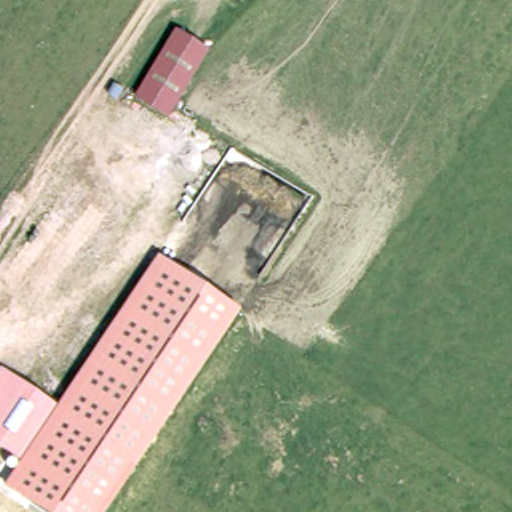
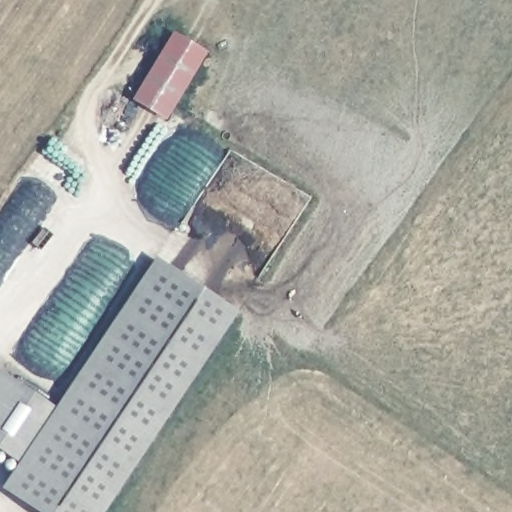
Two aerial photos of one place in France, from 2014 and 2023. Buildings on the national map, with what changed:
unchanged [(207,47),(166,111),(132,89),(173,26),(207,47)]
unchanged [(19,465),(0,452),(0,370),(56,408),(156,257),(239,312),(107,512),(35,512),(3,490),(19,465)]

